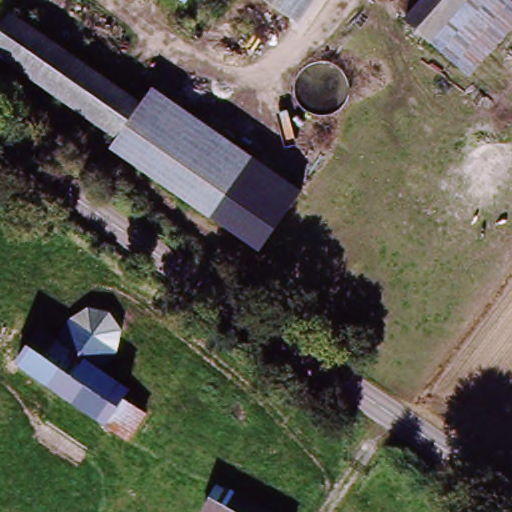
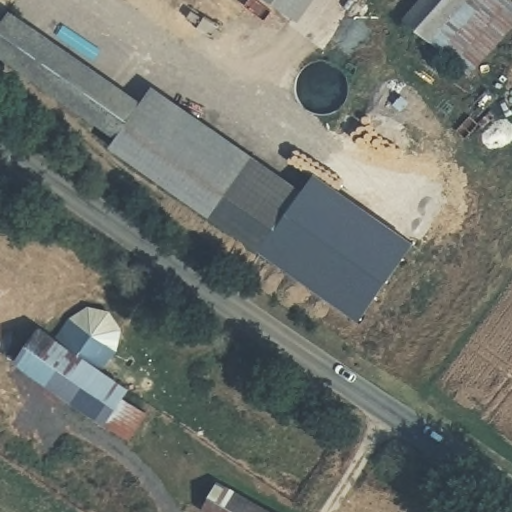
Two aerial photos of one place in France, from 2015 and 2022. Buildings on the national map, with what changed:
unchanged [(275,0),(295,0),(288,10),(275,0)]
unchanged [(428,0),(476,0),(438,50),(408,26),(428,0)]
unchanged [(476,81),(438,50),(476,0),(512,0),(512,34),(476,81)]
unchanged [(0,68),(0,26),(9,13),(141,104),(286,205),(258,247),(0,68)]
unchanged [(297,189),(286,205),(141,104),(152,88),(297,189)]
new [(286,205),(297,189),(310,173),(408,247),(356,319),(258,247),(286,205)]
unchanged [(97,428),(11,364),(39,326),(58,340),(75,319),(90,307),(107,310),(120,328),(111,347),(97,369),(125,389),(119,397),(140,412),(119,443),(97,428)]
unchanged [(223,472),(278,512),(194,512),(223,472)]

